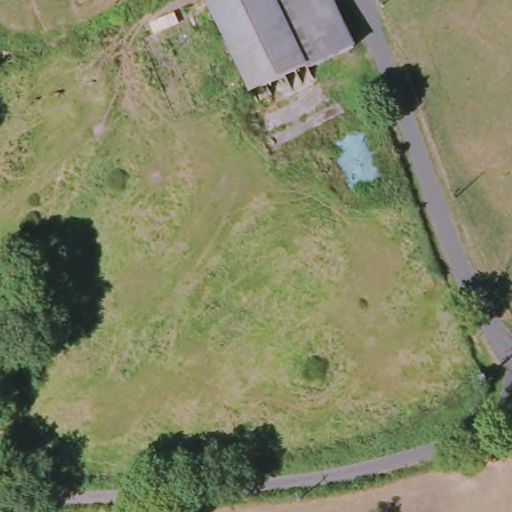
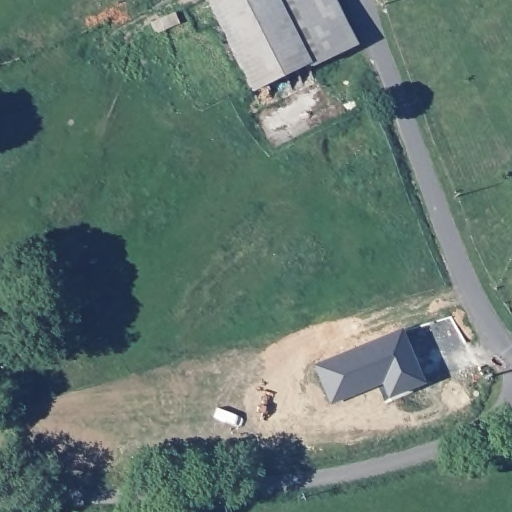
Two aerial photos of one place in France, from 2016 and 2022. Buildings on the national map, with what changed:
unchanged [(344,45),(293,69),(289,60),(235,84),(229,70),(197,0),(323,0),(344,45)]
new [(325,383),(317,362),(402,331),(422,382),(390,394),(382,376),(375,378),(376,382),(350,392),(332,400),(325,383)]

